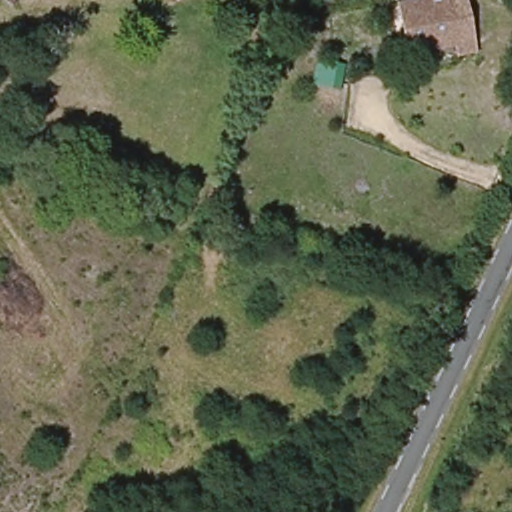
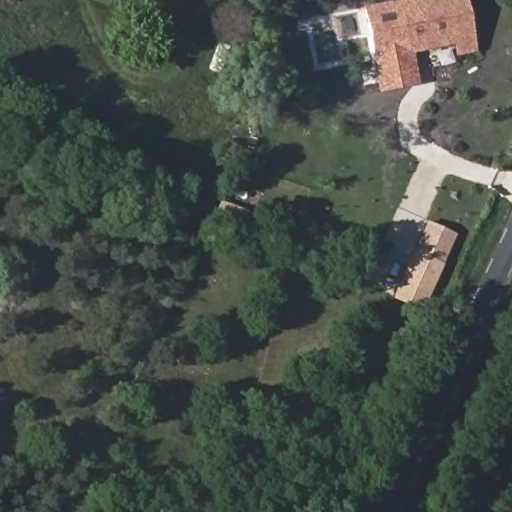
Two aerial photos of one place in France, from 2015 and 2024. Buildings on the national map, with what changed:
unchanged [(3,0),(17,0),(14,6),(3,0)]
new [(377,92),(362,7),(398,0),(403,0),(406,52),(412,51),(416,84),(377,92)]
unchanged [(403,0),(443,0),(450,49),(406,52),(403,0)]
unchanged [(450,49),(443,0),(464,0),(470,47),(450,49)]
new [(429,221),(457,233),(422,310),(395,297),(429,221)]

